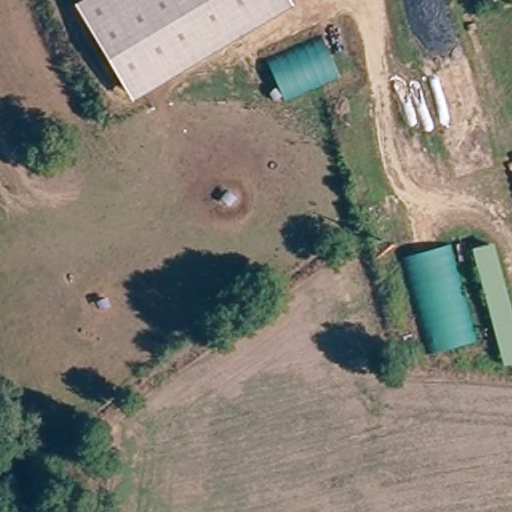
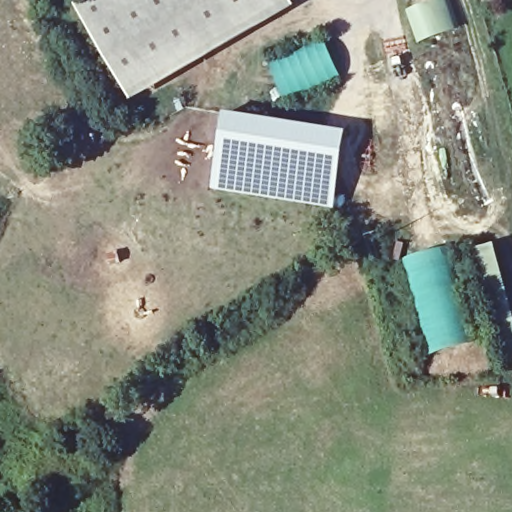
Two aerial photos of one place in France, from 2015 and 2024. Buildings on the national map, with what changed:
unchanged [(133,98),(81,17),(108,0),(288,0),(133,98)]
unchanged [(267,61),(322,38),(339,77),(285,102),(267,61)]
new [(347,132),(336,211),(217,192),(227,114),(347,132)]
unchanged [(512,307),(512,362),(502,365),(472,249),(494,242),(512,307)]
unchanged [(450,246),(477,342),(431,355),(404,259),(450,246)]

